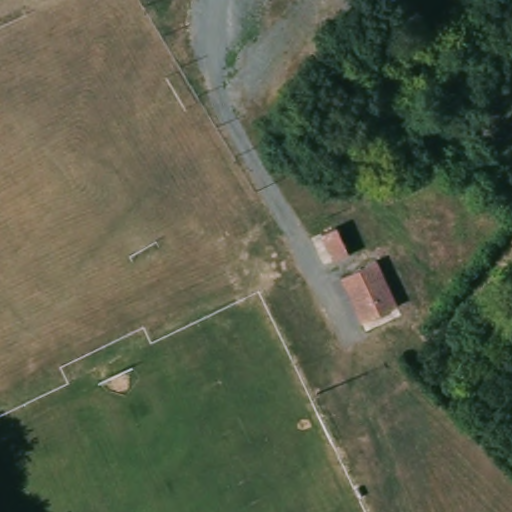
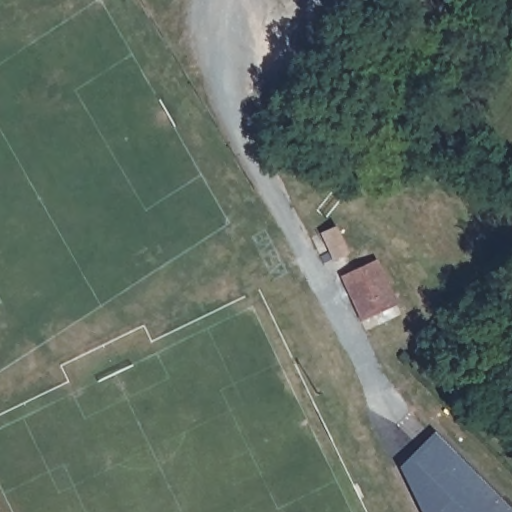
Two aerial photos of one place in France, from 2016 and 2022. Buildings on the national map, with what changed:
unchanged [(358,258),(342,265),(329,237),(345,229),(358,258)]
unchanged [(401,305),(366,323),(344,277),(379,260),(401,305)]
new [(398,466),(433,433),(512,510),(512,512),(420,512),(398,466)]

